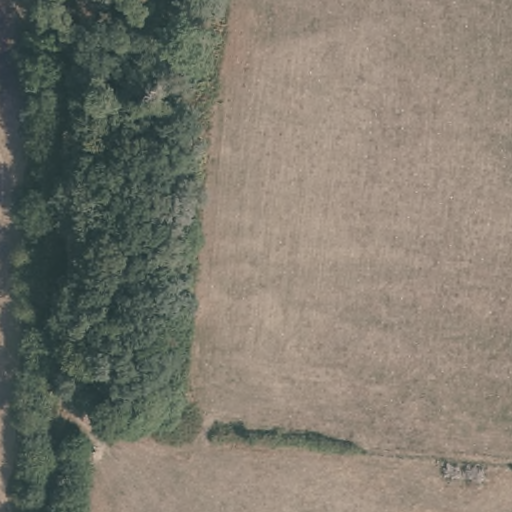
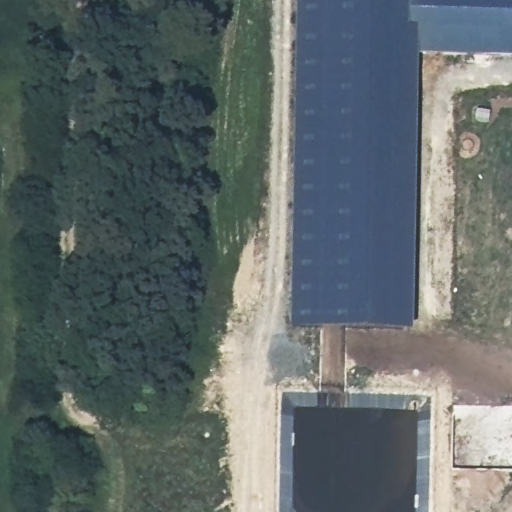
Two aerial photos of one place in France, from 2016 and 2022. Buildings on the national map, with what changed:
new [(417,28),(413,330),(292,329),(297,0),(408,0),(408,28),(417,28)]

